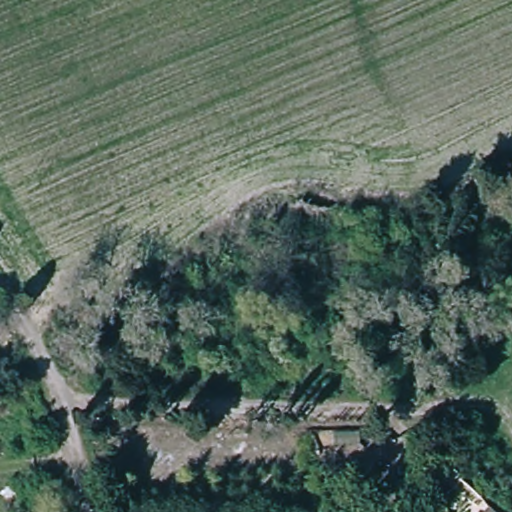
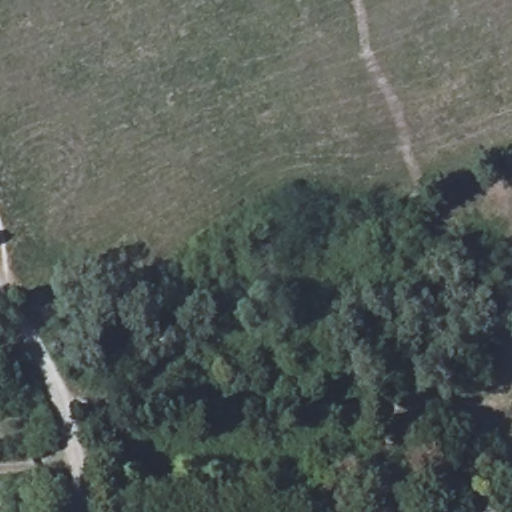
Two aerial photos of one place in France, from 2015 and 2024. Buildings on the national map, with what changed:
unchanged [(387,322),(388,338),(368,341),(365,325),(387,322)]
unchanged [(350,326),(351,341),(319,342),(317,326),(350,326)]
unchanged [(502,512),(487,512),(495,505),(502,512)]

